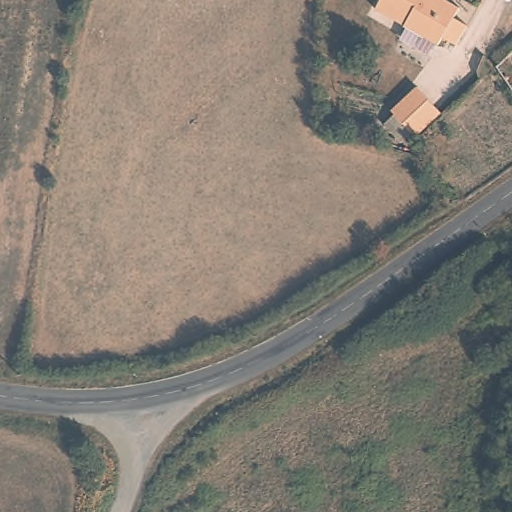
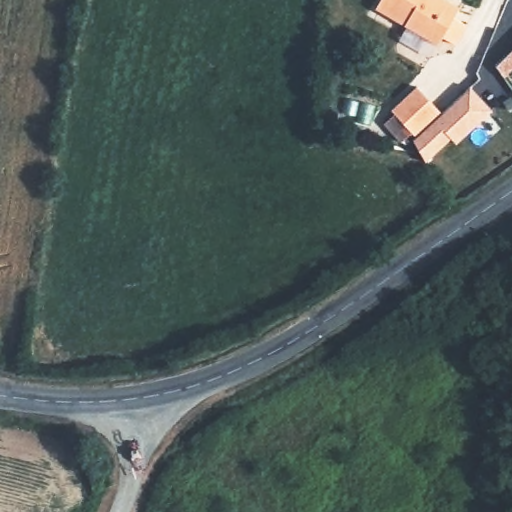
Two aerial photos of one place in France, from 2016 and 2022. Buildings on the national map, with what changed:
unchanged [(457,11),(451,20),(462,28),(450,47),(438,39),(435,45),(374,5),(377,0),(441,0),(457,11)]
new [(512,50),(512,68),(503,76),(496,66),(512,50)]
unchanged [(389,110),(413,84),(438,110),(412,134),(389,110)]
new [(471,87),(492,110),(456,145),(451,139),(426,162),(412,134),(438,110),(442,114),(471,87)]

